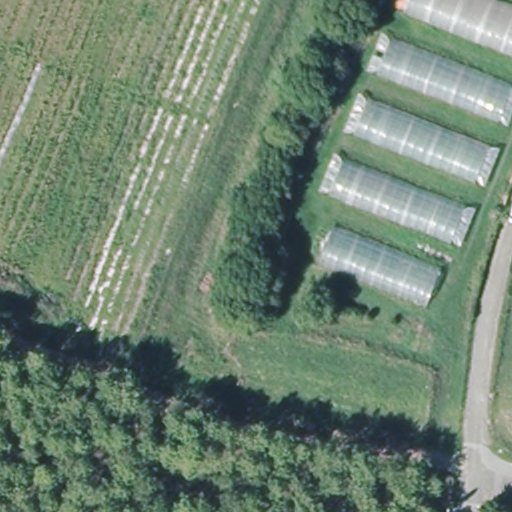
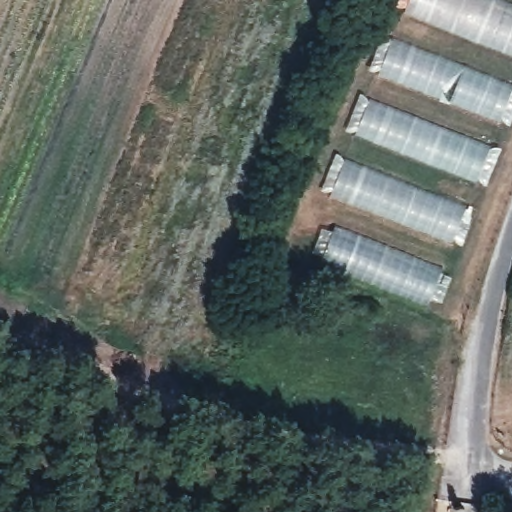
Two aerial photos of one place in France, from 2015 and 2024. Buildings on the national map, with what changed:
unchanged [(512,2),(512,53),(405,11),(409,0),(506,0),(512,2)]
unchanged [(512,80),(512,93),(501,120),(377,74),(393,32),(512,80)]
unchanged [(493,145),(478,183),(355,134),(370,95),(493,145)]
unchanged [(469,205),(455,243),(331,195),(346,155),(469,205)]
unchanged [(442,265),(427,306),(321,263),(337,223),(442,265)]

